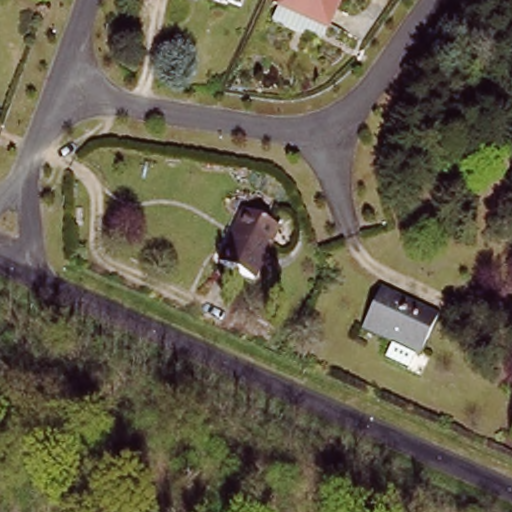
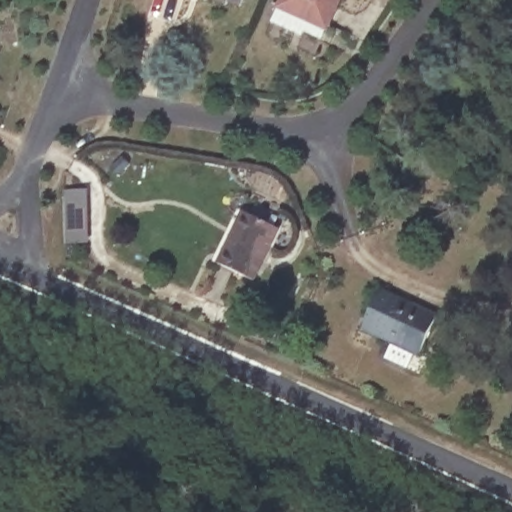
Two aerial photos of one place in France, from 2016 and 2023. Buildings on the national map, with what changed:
unchanged [(209,0),(232,0),(228,7),(209,0)]
unchanged [(276,0),(335,0),(320,26),(276,0)]
new [(86,190),(88,241),(65,242),(63,191),(86,190)]
unchanged [(275,229),(253,275),(216,257),(238,211),(275,229)]
unchanged [(439,320),(422,357),(367,331),(384,294),(439,320)]

